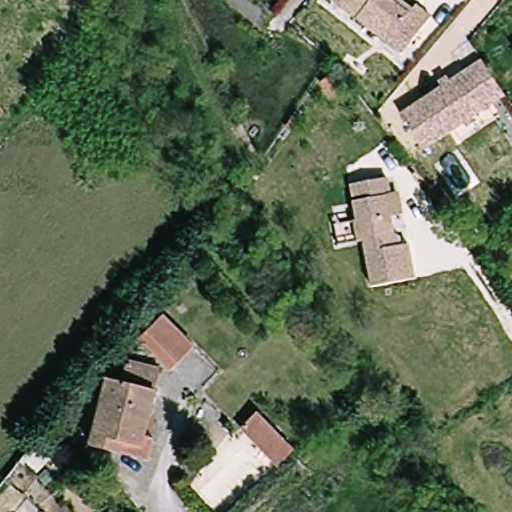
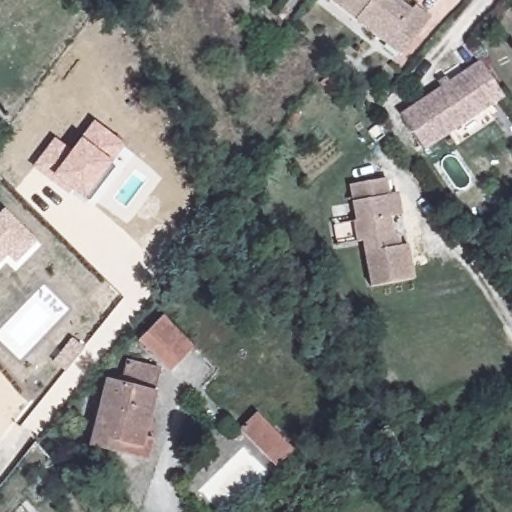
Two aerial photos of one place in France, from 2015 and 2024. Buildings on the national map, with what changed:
unchanged [(386,43),(333,0),(401,0),(412,9),(416,5),(431,17),(411,42),(401,55),(386,43)]
unchanged [(482,62),(504,97),(424,150),(401,115),(482,62)]
new [(111,162),(110,165),(114,168),(88,201),(84,197),(83,200),(71,190),(68,195),(33,167),(54,137),(71,150),(80,137),(93,120),(125,145),(111,162)]
unchanged [(417,262),(419,280),(376,286),(369,242),(363,242),(359,223),(363,222),(356,185),(392,179),(396,197),(392,199),(398,232),(407,239),(408,246),(414,246),(417,262)]
new [(6,256),(0,262),(0,212),(3,208),(38,241),(14,263),(6,256)]
unchanged [(169,370),(141,341),(163,318),(193,347),(169,370)]
unchanged [(309,352),(290,330),(304,318),(323,341),(309,352)]
unchanged [(148,461),(119,453),(88,446),(105,380),(117,382),(123,361),(159,370),(154,391),(156,392),(145,437),(154,438),(148,461)]
unchanged [(276,465),(241,428),(256,413),(291,450),(276,465)]

